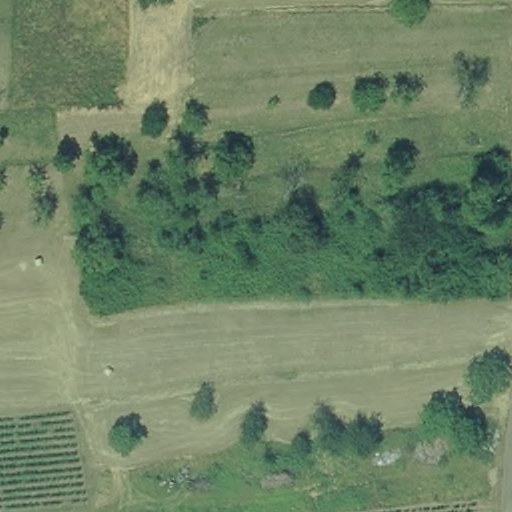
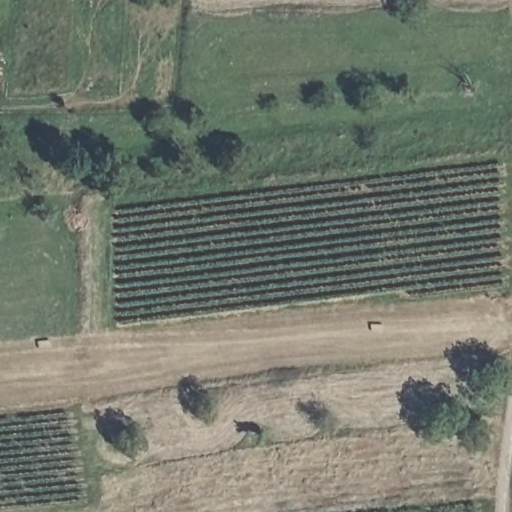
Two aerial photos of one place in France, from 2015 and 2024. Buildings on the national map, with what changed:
[]

